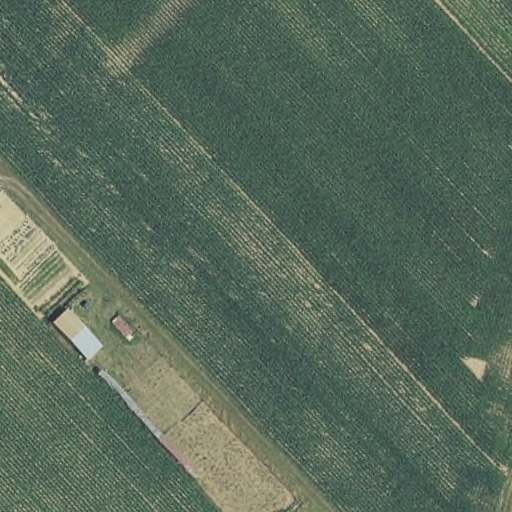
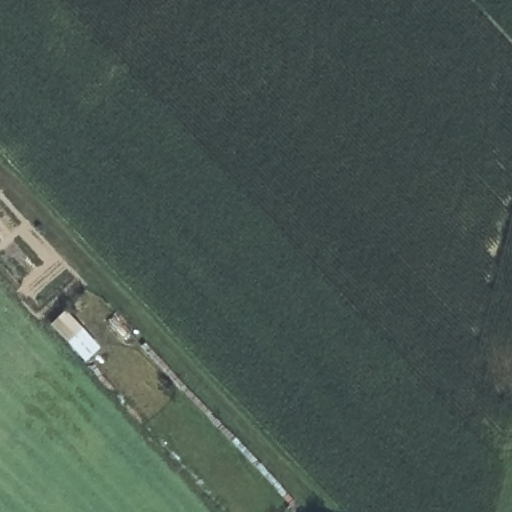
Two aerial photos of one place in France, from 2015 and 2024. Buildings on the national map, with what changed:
unchanged [(103,347),(88,364),(49,327),(68,308),(103,347)]

